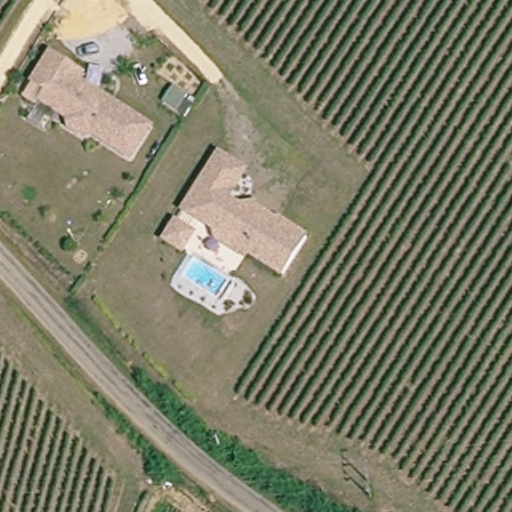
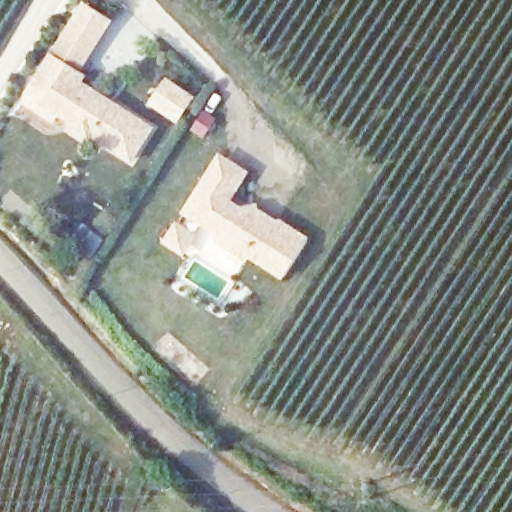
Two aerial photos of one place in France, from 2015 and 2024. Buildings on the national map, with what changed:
new [(56,54),(38,82),(32,77),(82,1),(114,21),(82,70),(56,54)]
unchanged [(56,54),(87,74),(83,81),(97,90),(106,96),(155,127),(134,159),(96,134),(87,137),(76,128),(79,124),(72,119),(46,101),(54,91),(38,82),(56,54)]
unchanged [(248,254),(222,236),(220,227),(189,206),(208,175),(222,151),(248,167),(233,192),(234,197),(246,203),(259,201),(280,215),(311,234),(288,272),(252,249),(248,254)]
unchanged [(198,230),(187,247),(170,236),(180,219),(198,230)]

